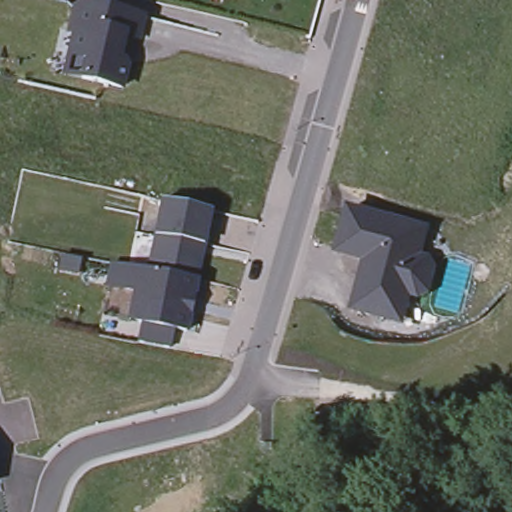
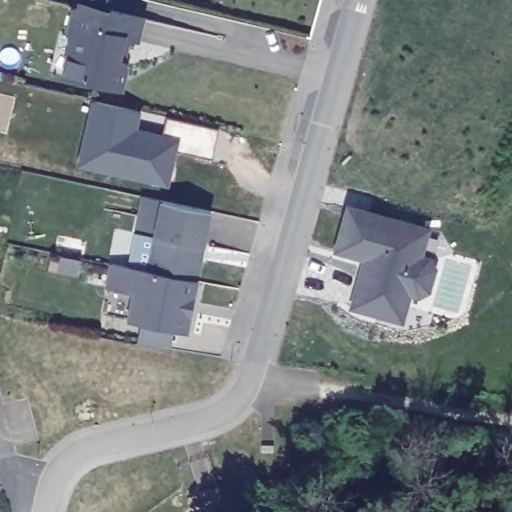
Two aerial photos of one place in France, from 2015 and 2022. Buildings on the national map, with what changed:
unchanged [(64,50),(70,28),(65,27),(70,4),(75,5),(105,11),(105,9),(137,16),(131,38),(117,35),(112,59),(116,60),(120,65),(115,86),(75,76),(59,72),(64,50)]
new [(95,101),(137,111),(132,131),(176,142),(165,183),(80,163),(95,101)]
unchanged [(141,197),(160,202),(155,227),(135,224),(141,197)]
unchanged [(192,281),(201,282),(188,337),(172,333),(169,352),(137,344),(142,325),(127,320),(133,293),(104,287),(110,263),(146,270),(160,202),(210,210),(192,281)]
unchanged [(382,315),(363,310),(350,305),(364,256),(334,248),(347,205),(395,219),(410,224),(425,227),(417,255),(427,258),(432,266),(426,290),(417,295),(407,291),(403,305),(399,320),(382,315)]
new [(153,237),(146,270),(127,266),(134,234),(153,237)]

